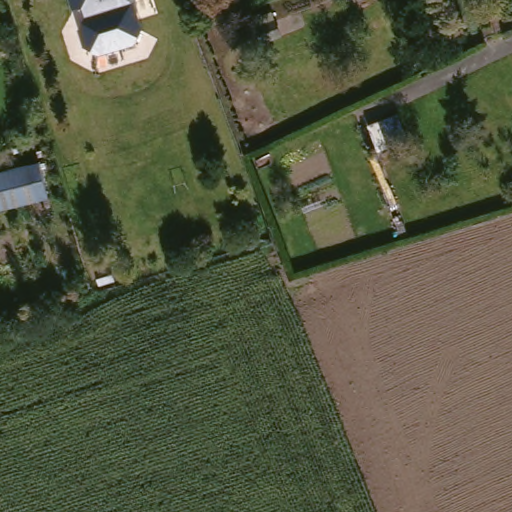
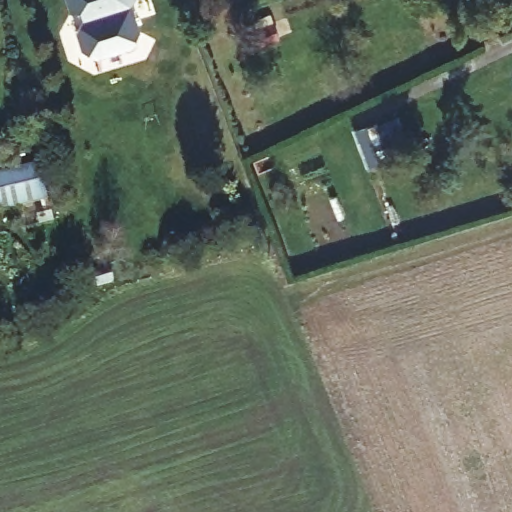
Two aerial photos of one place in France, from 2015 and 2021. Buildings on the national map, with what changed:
unchanged [(151,31),(144,43),(106,55),(93,48),(87,29),(94,16),(91,6),(82,10),(79,0),(142,0),(142,1),(151,31)]
unchanged [(53,196),(2,209),(0,199),(0,175),(45,164),(53,196)]

